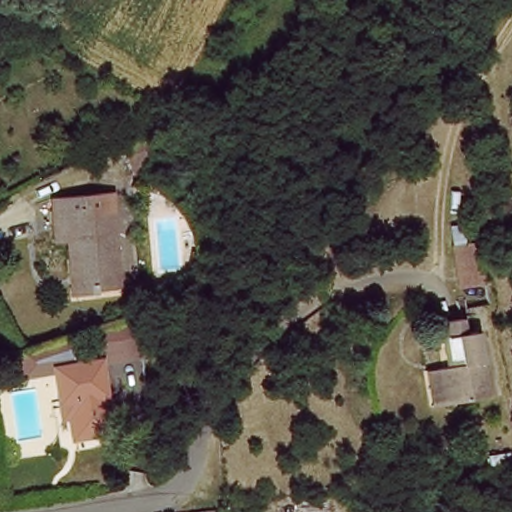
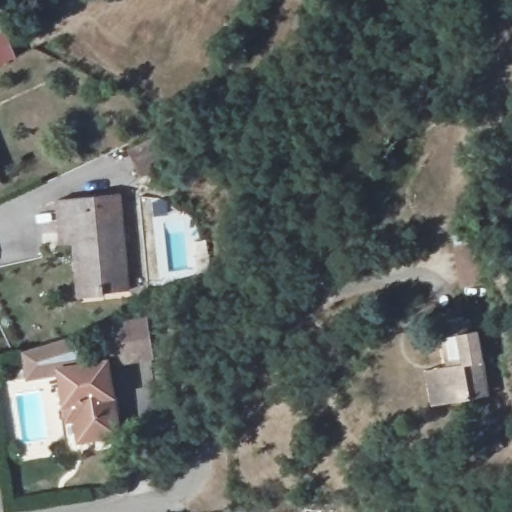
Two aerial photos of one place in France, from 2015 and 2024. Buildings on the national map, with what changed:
new [(0,67),(0,33),(4,31),(17,59),(0,67)]
unchanged [(165,143),(173,161),(146,174),(137,155),(165,143)]
unchanged [(4,182),(0,185),(0,175),(4,182)]
unchanged [(75,262),(72,245),(63,246),(55,202),(116,192),(132,289),(105,293),(81,297),(75,262)]
unchanged [(452,246),(479,241),(487,285),(460,289),(452,246)]
unchanged [(473,400),(446,403),(433,405),(426,367),(440,364),(453,362),(445,324),(469,319),(472,335),(482,334),(488,382),(490,398),(473,400)]
unchanged [(156,363),(119,366),(115,330),(135,324),(149,320),(156,363)]
unchanged [(72,411),(66,411),(60,382),(28,385),(24,358),(80,341),(85,372),(112,369),(123,442),(77,448),(72,411)]

